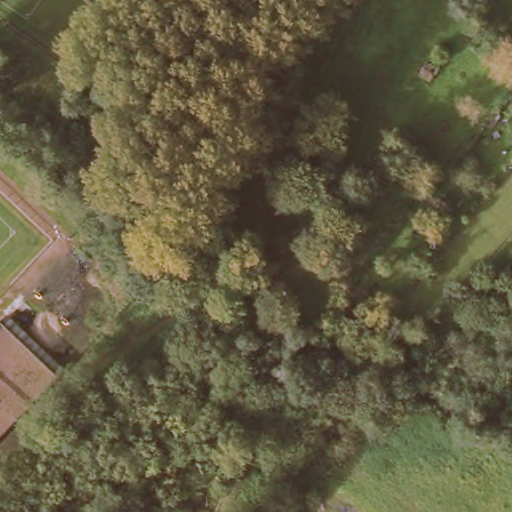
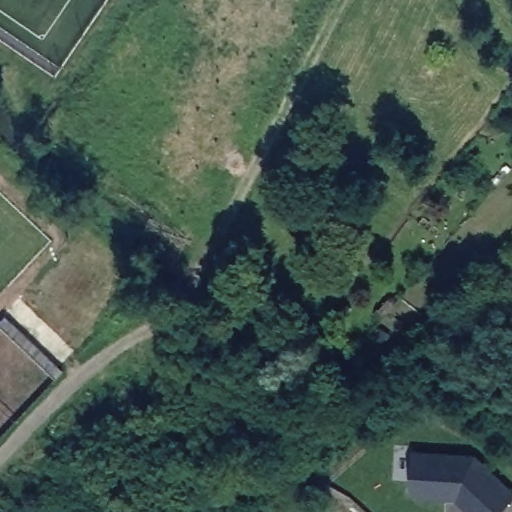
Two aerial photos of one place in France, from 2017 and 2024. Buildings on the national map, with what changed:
unchanged [(0,323),(8,315),(65,371),(58,378),(0,323)]
new [(477,453),(512,487),(512,500),(500,512),(475,512),(457,494),(449,494),(449,495),(420,494),(415,488),(417,449),(477,453)]

